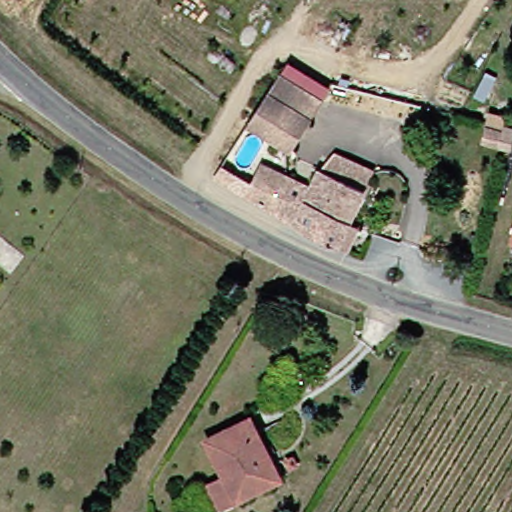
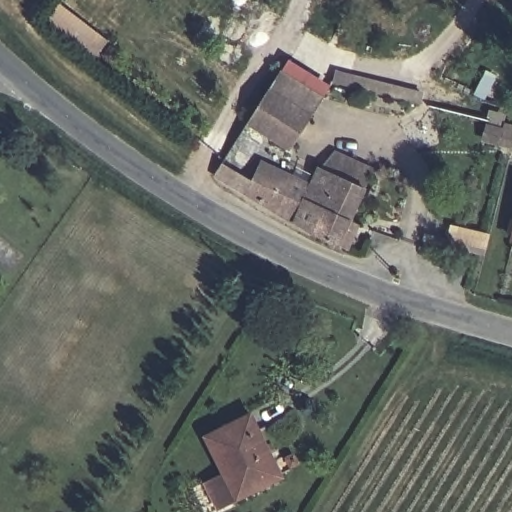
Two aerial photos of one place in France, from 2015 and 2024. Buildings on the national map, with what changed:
new [(95,58),(47,21),(61,3),(109,39),(95,58)]
unchanged [(287,60),(330,86),(299,137),(258,112),(287,60)]
unchanged [(324,233),(336,212),(318,203),(328,187),(334,176),(338,169),(348,151),(389,172),(378,189),(375,197),(360,223),(367,226),(354,248),(347,244),(324,233)]
unchanged [(306,224),(282,213),(225,184),(222,183),(231,164),(235,166),(261,179),(273,159),(303,174),(328,187),(318,203),(336,212),(324,233),(306,224)]
unchanged [(278,475),(228,504),(215,482),(231,473),(210,434),(255,408),(275,442),(290,468),(278,475)]

